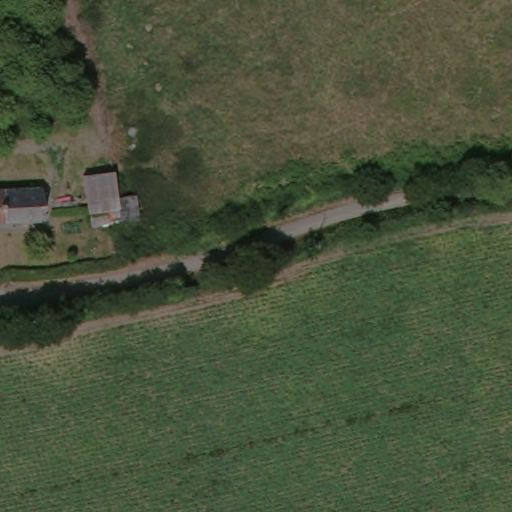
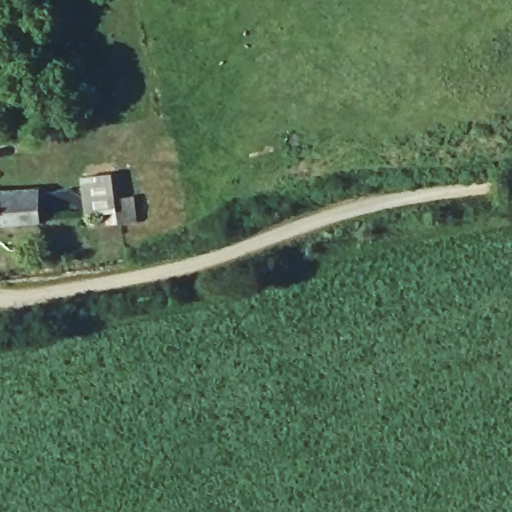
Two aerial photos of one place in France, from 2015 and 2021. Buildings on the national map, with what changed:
unchanged [(117,207),(95,210),(91,184),(90,174),(112,171),(114,184),(117,207)]
unchanged [(41,184),(41,216),(0,216),(0,185),(41,184)]

